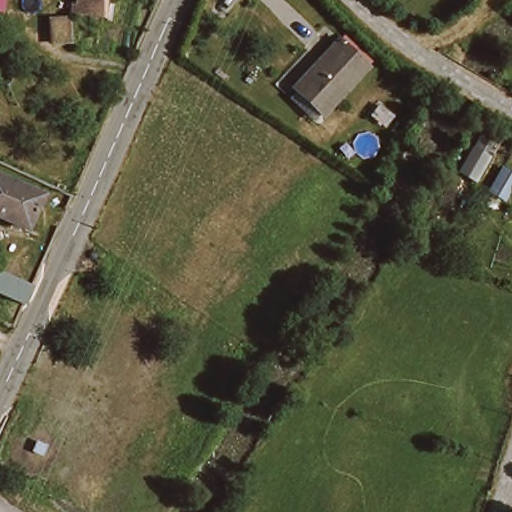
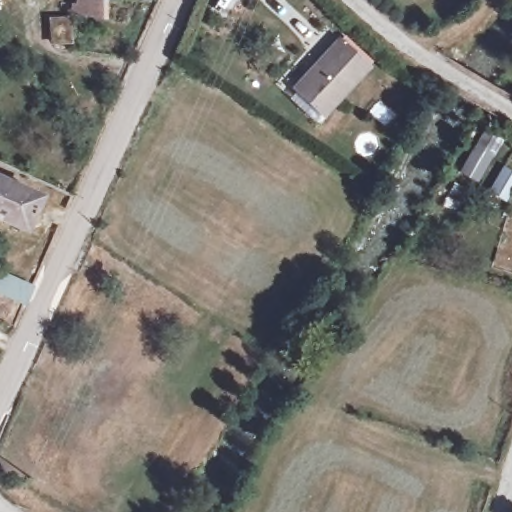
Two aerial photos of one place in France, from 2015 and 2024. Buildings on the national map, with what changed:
unchanged [(75,13),(76,3),(74,3),(75,0),(98,0),(97,15),(75,13)]
unchanged [(329,36),(347,49),(363,61),(345,88),(326,113),(292,87),(312,61),(329,36)]
unchanged [(472,145),(487,153),(475,175),(460,168),(472,145)]
unchanged [(490,184),(501,163),(512,168),(512,183),(507,193),(490,184)]
unchanged [(30,188),(16,220),(7,218),(0,214),(0,176),(1,176),(30,188)]
unchanged [(26,306),(1,294),(7,280),(34,290),(26,306)]

